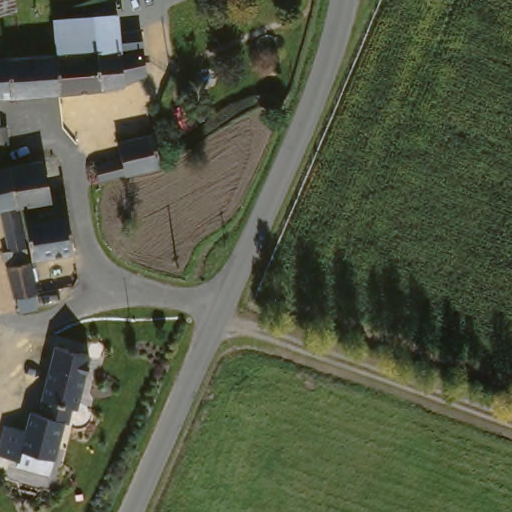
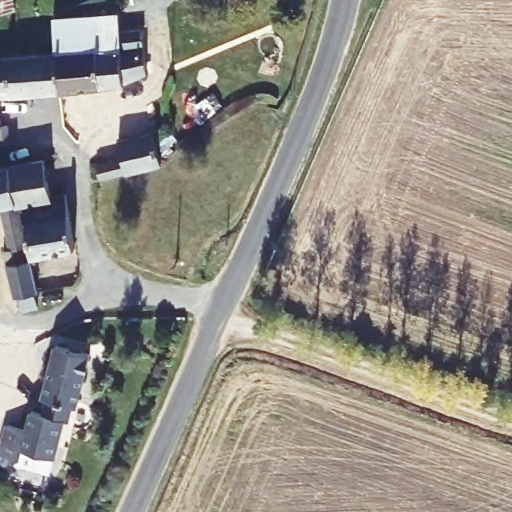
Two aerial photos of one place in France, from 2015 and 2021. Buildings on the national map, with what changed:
unchanged [(16,7),(0,11),(0,0),(15,0),(16,7)]
unchanged [(123,8),(125,27),(103,29),(105,44),(63,48),(59,13),(123,8)]
unchanged [(146,24),(149,42),(152,69),(129,79),(107,82),(64,86),(63,48),(105,44),(103,29),(125,27),(146,24)]
unchanged [(42,49),(63,48),(64,86),(2,91),(5,122),(13,121),(14,139),(0,140),(0,54),(42,49)]
unchanged [(166,166),(105,181),(101,164),(127,158),(123,142),(158,133),(166,166)]
unchanged [(80,250),(36,257),(31,204),(26,205),(14,167),(48,161),(55,198),(71,195),(80,250)]
unchanged [(26,205),(35,261),(42,293),(40,294),(42,306),(43,308),(25,312),(22,297),(20,298),(12,265),(8,252),(15,250),(5,207),(0,209),(0,170),(14,167),(26,205)]
unchanged [(88,351),(77,406),(70,405),(66,420),(60,417),(48,472),(16,469),(19,458),(0,455),(0,427),(0,425),(26,430),(28,408),(44,411),(48,403),(43,401),(52,348),(88,351)]

